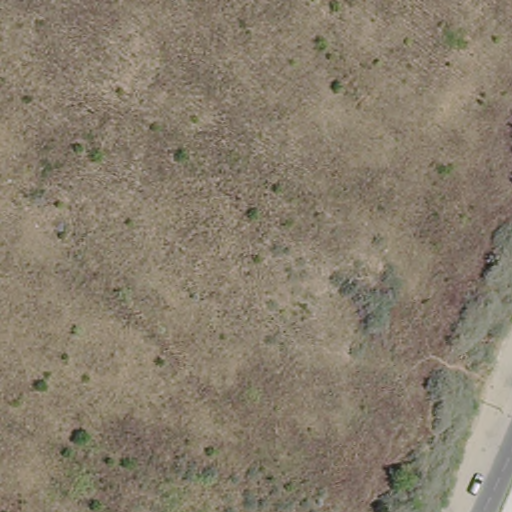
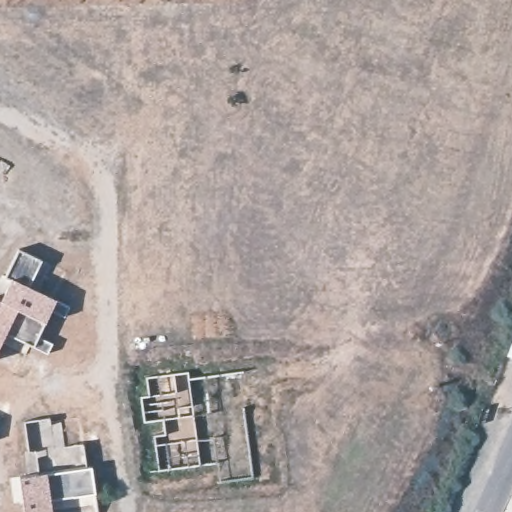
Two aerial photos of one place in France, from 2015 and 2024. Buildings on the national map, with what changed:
new [(39,291),(56,299),(34,346),(5,332),(0,345),(0,299),(3,300),(13,278),(6,275),(19,248),(53,264),(39,291)]
new [(255,475),(221,480),(218,461),(159,470),(155,435),(166,433),(164,419),(145,421),(142,395),(150,394),(148,376),(189,371),(191,378),(243,371),(255,475)]
new [(52,417),(56,446),(86,443),(90,465),(40,472),(36,449),(29,450),(25,420),(52,417)]
new [(53,499),(54,512),(25,512),(19,475),(40,472),(90,465),(93,465),(98,492),(53,499)]

